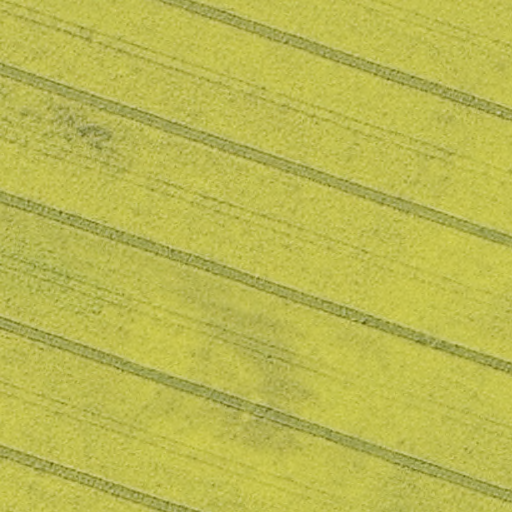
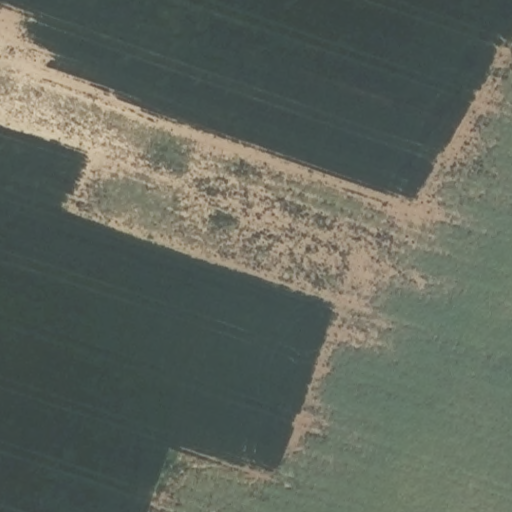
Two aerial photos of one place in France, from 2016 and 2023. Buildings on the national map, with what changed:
[]

